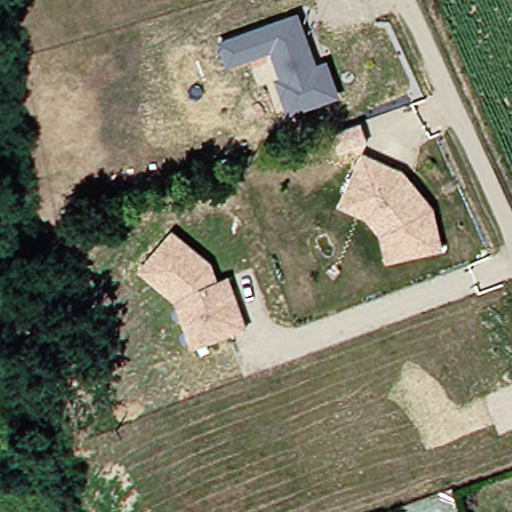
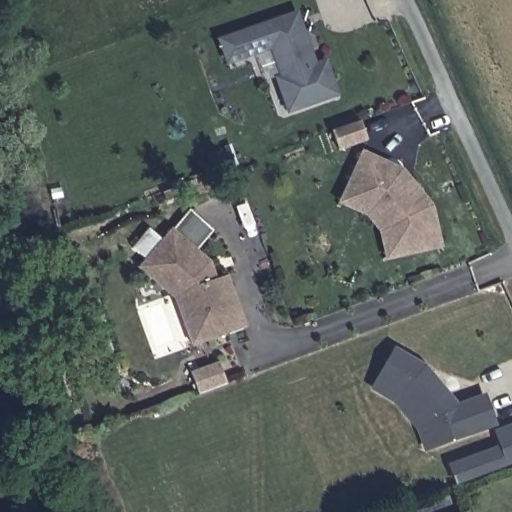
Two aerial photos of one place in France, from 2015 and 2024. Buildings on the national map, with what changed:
unchanged [(298,12),(319,65),(328,61),(340,95),(286,112),(273,81),(280,77),(274,52),(224,65),(218,38),(298,12)]
new [(364,122),(371,141),(343,150),(336,132),(364,122)]
unchanged [(401,170),(438,217),(441,252),(389,260),(384,234),(373,217),(340,202),(363,154),(401,170)]
unchanged [(141,271),(170,228),(211,260),(218,281),(230,277),(248,330),(199,348),(180,299),(141,271)]
new [(429,366),(458,403),(484,392),(495,426),(424,452),(416,430),(395,405),(371,389),(393,347),(429,366)]
new [(219,362),(227,383),(202,392),(194,372),(219,362)]
new [(504,446),(498,430),(512,425),(512,462),(459,481),(453,464),(504,446)]

